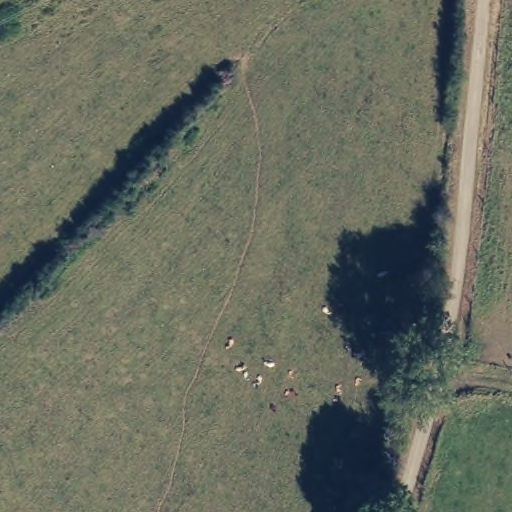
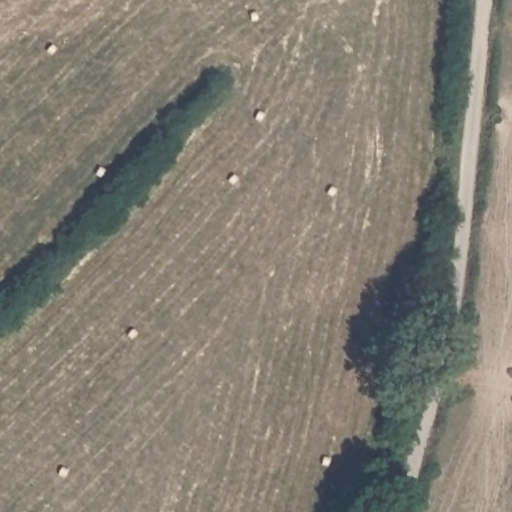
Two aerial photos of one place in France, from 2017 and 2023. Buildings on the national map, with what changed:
[]

